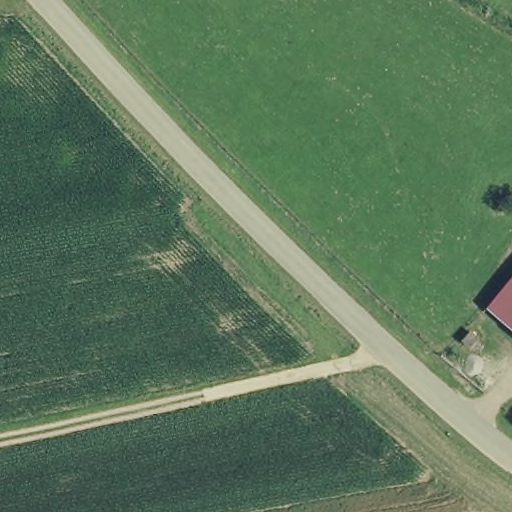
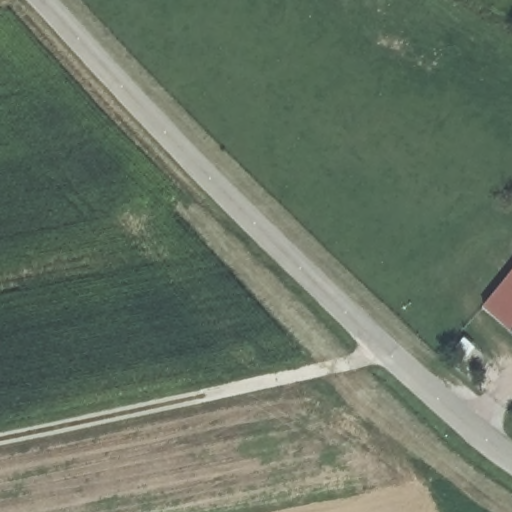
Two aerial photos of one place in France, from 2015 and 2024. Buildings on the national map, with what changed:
unchanged [(493,312),(512,291),(512,329),(493,312)]

